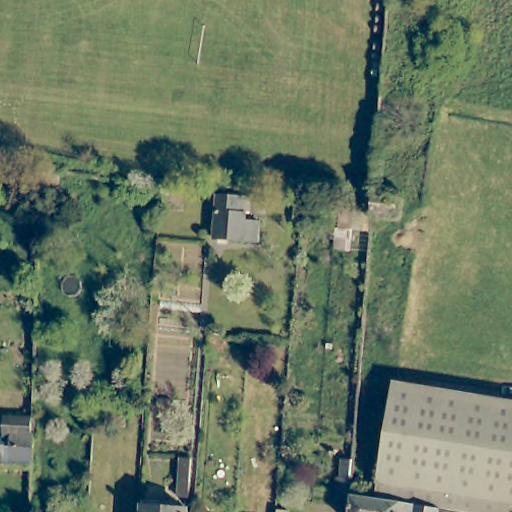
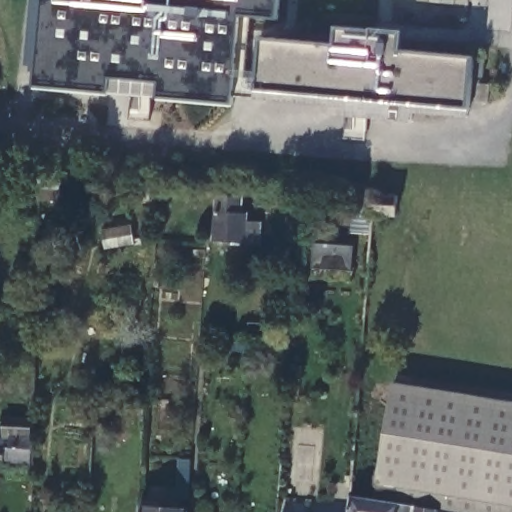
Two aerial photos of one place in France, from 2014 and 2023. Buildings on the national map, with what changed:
new [(276,18),(252,16),(247,87),(247,97),(234,98),(233,104),(34,87),(34,65),(27,65),(32,0),(278,0),(276,18)]
new [(337,45),(338,27),(404,31),(401,52),(473,58),(468,117),(411,111),(411,120),(367,116),(366,140),(347,139),(346,125),(356,126),(358,116),(346,115),(347,107),(247,97),(247,87),(257,87),(262,39),(337,45)]
unchanged [(62,195),(44,195),(44,163),(64,167),(62,195)]
unchanged [(264,219),(262,240),(220,236),(223,191),(246,193),(258,194),(257,211),(251,211),(251,218),(264,219)]
unchanged [(376,201),(401,203),(399,224),(375,221),(376,201)]
new [(352,271),(312,268),(314,241),(355,245),(352,271)]
unchanged [(352,498),(377,502),(396,386),(512,406),(512,512),(351,512),(352,506),(352,498)]
unchanged [(30,473),(0,471),(0,440),(1,440),(4,417),(32,418),(30,473)]
unchanged [(182,481),(192,482),(191,496),(188,496),(181,496),(182,481)]
unchanged [(144,512),(144,505),(187,508),(191,509),(190,512),(144,512)]
demolished [(292,507),(292,512),(278,512),(279,506),(292,507)]

